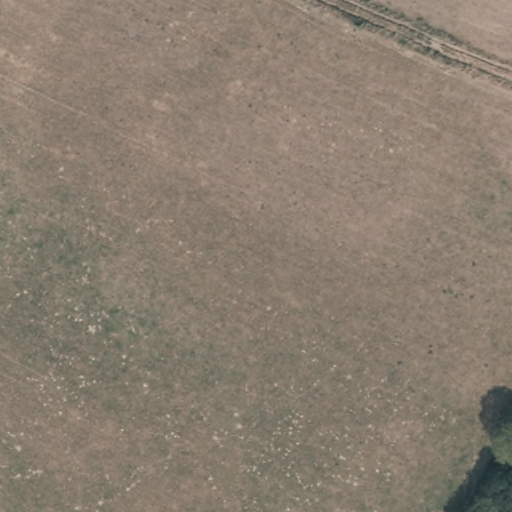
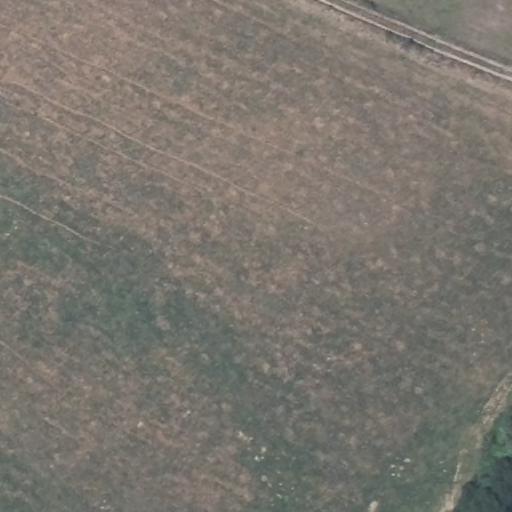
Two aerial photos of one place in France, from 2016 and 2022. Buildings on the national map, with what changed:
[]

